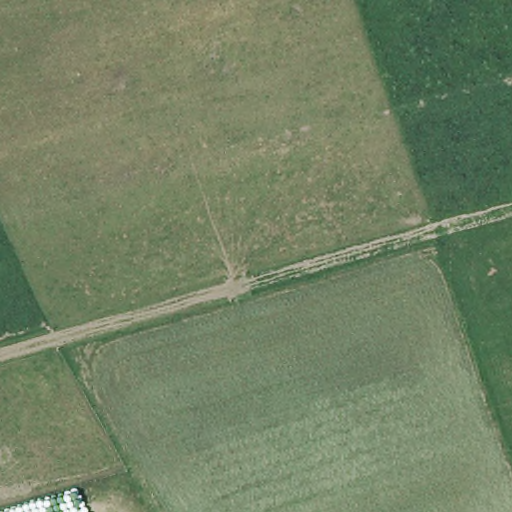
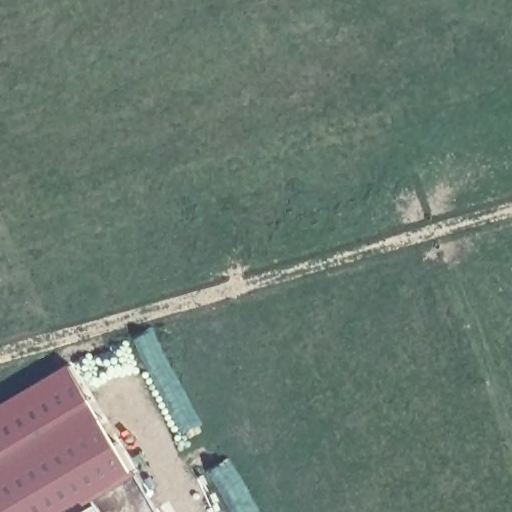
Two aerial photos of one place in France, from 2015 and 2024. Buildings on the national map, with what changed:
new [(69,361),(119,439),(138,472),(75,512),(0,512),(0,403),(69,361)]

